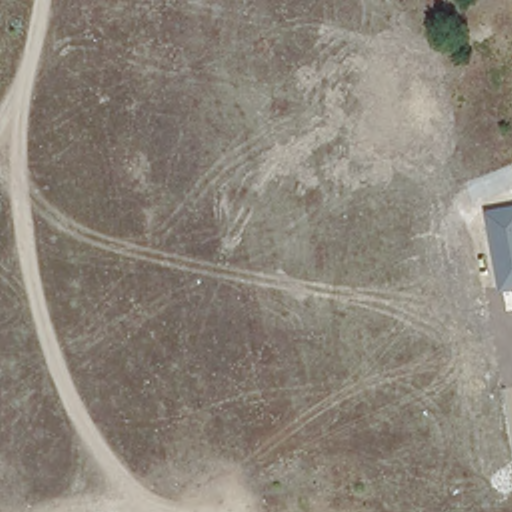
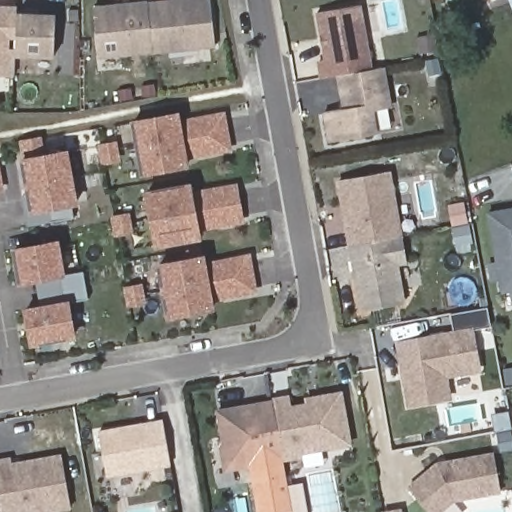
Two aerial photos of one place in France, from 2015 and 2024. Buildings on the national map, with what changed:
new [(209,0),(214,45),(152,52),(147,3),(176,0),(209,0)]
new [(147,3),(152,52),(97,57),(92,9),(147,3)]
new [(14,15),(12,55),(12,74),(0,73),(0,6),(14,7),(14,15)]
new [(368,75),(334,80),(319,82),(316,65),(322,65),(314,17),(357,10),(368,75)]
new [(53,55),(12,55),(14,15),(54,15),(53,55)]
new [(372,139),(326,147),(320,117),(340,114),(334,80),(368,75),(380,72),(387,112),(368,115),(372,139)]
new [(180,112),(181,119),(224,110),(231,150),(188,157),(188,165),(142,174),(132,120),(180,112)]
new [(31,212),(21,156),(18,140),(42,135),(46,152),(70,148),(80,204),(72,205),(73,217),(33,224),(31,212)]
new [(400,240),(349,248),(338,185),(389,175),(400,240)]
new [(2,189),(0,189),(0,177),(2,189)]
new [(191,183),(193,190),(239,183),(245,220),(200,229),(201,237),(153,245),(143,191),(191,183)]
unchanged [(488,211),(512,207),(512,290),(503,291),(488,211)]
new [(24,307),(42,304),(38,281),(18,285),(12,247),(59,238),(66,273),(82,270),(87,297),(70,300),(77,338),(31,345),(24,307)]
new [(404,305),(360,312),(349,248),(400,240),(403,259),(396,260),(404,305)]
new [(206,255),(207,260),(251,252),(257,291),(213,300),(215,307),(167,316),(157,263),(206,255)]
new [(477,370),(443,376),(447,398),(407,405),(397,343),(470,330),(477,370)]
new [(302,457),(284,461),(283,455),(272,400),(289,397),(291,408),(319,403),(318,398),(331,395),(340,393),(350,444),(340,446),(301,454),(302,457)]
new [(283,455),(228,466),(217,411),(272,400),(283,455)]
new [(169,464),(105,476),(97,432),(161,421),(169,464)]
new [(69,507),(40,512),(1,512),(0,507),(0,460),(9,458),(10,464),(60,455),(69,507)]
new [(283,455),(284,461),(288,484),(303,481),(307,512),(294,512),(293,511),(288,512),(258,512),(250,462),(283,455)]
new [(492,455),(498,492),(452,500),(437,512),(426,512),(406,488),(435,464),(492,455)]
new [(401,509),(402,512),(384,512),(401,509)]

